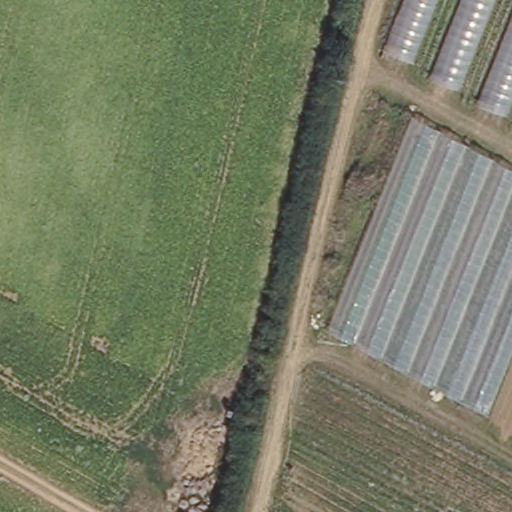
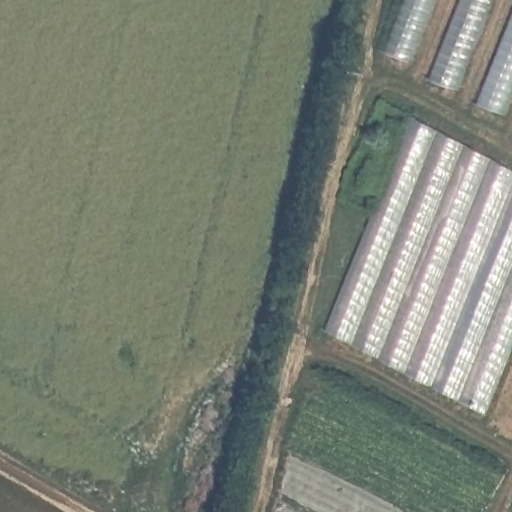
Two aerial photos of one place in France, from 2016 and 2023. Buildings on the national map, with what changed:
unchanged [(381,51),(401,0),(512,0),(512,121),(381,51)]
unchanged [(512,171),(512,349),(485,417),(326,334),(410,118),(512,171)]

